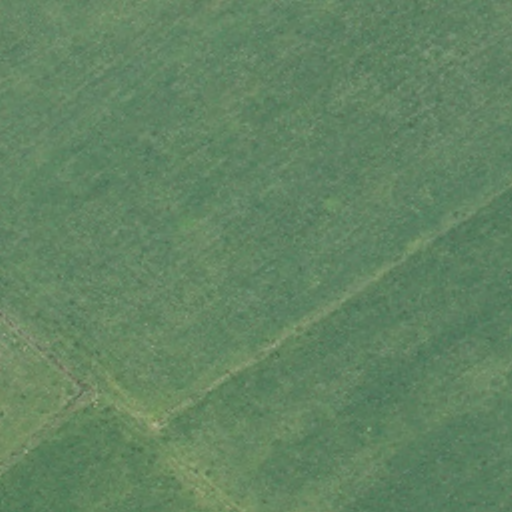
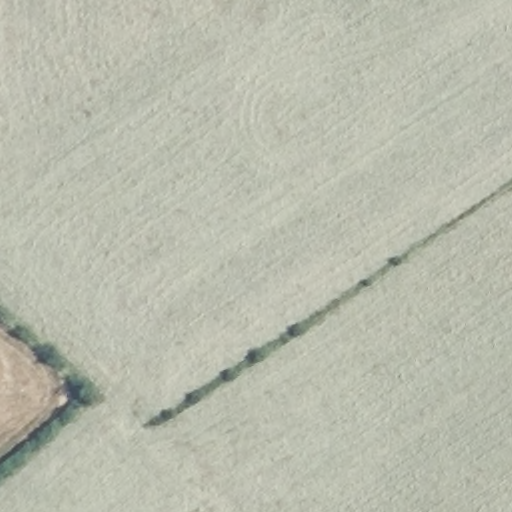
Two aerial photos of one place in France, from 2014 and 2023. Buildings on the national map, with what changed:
[]

